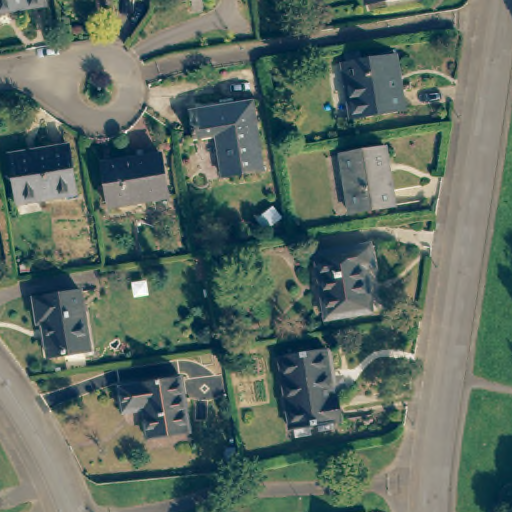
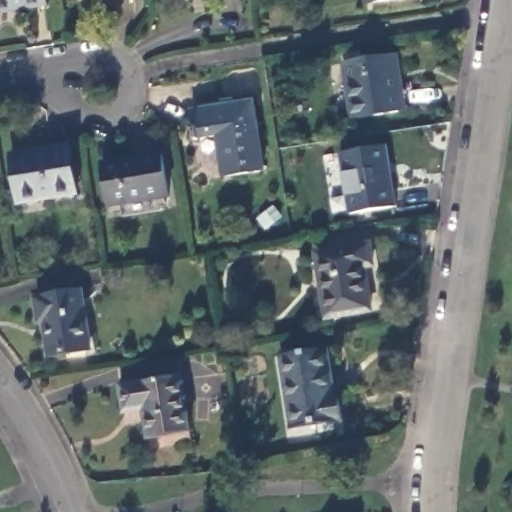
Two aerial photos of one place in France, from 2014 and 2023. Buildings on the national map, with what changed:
unchanged [(0,13),(0,0),(45,0),(46,5),(0,13)]
unchanged [(365,0),(394,0),(366,6),(365,0)]
unchanged [(396,55),(399,76),(392,77),(398,114),(350,121),(342,64),(396,55)]
unchanged [(262,167),(224,173),(216,130),(194,132),(190,108),(252,99),(262,167)]
unchanged [(36,154),(36,151),(70,146),(76,194),(16,203),(10,158),(36,154)]
unchanged [(385,148),(388,168),(387,168),(393,207),(349,214),(340,156),(385,148)]
unchanged [(161,155),(168,196),(108,206),(101,165),(161,155)]
unchanged [(369,247),(373,267),(366,268),(372,312),(326,319),(316,255),(369,247)]
unchanged [(86,351),(47,357),(42,322),(37,323),(35,298),(80,293),(86,351)]
unchanged [(327,352),(335,399),(339,399),(343,422),(290,431),(279,360),(327,352)]
unchanged [(192,426),(151,433),(146,404),(126,406),(123,382),(184,373),(192,426)]

